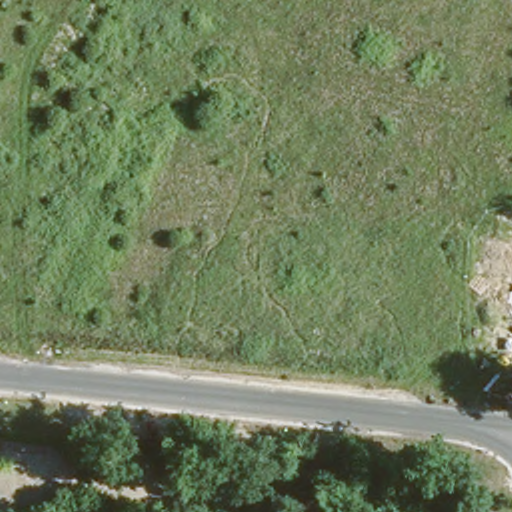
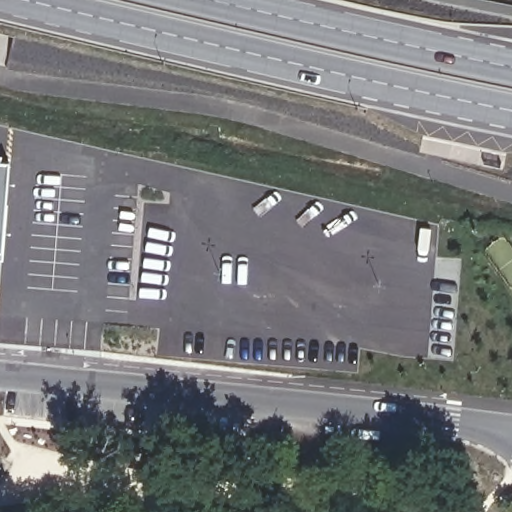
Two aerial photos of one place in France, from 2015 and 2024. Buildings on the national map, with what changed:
new [(4,259),(0,259),(0,160),(12,161),(4,259)]

